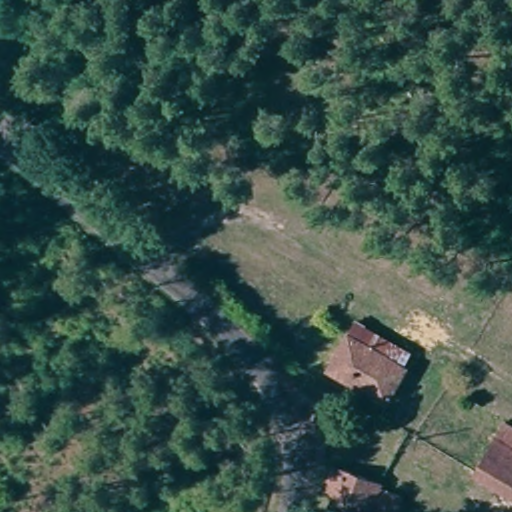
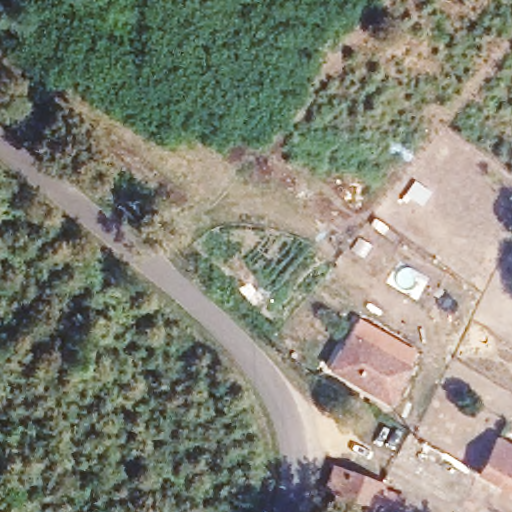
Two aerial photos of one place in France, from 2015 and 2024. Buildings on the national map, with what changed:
unchanged [(361,314),(393,335),(388,347),(410,361),(387,398),(331,366),(354,327),(361,314)]
unchanged [(498,430),(512,438),(512,486),(479,466),(498,430)]
unchanged [(381,496),(379,502),(399,508),(398,512),(352,512),(322,498),(331,474),(381,496)]

